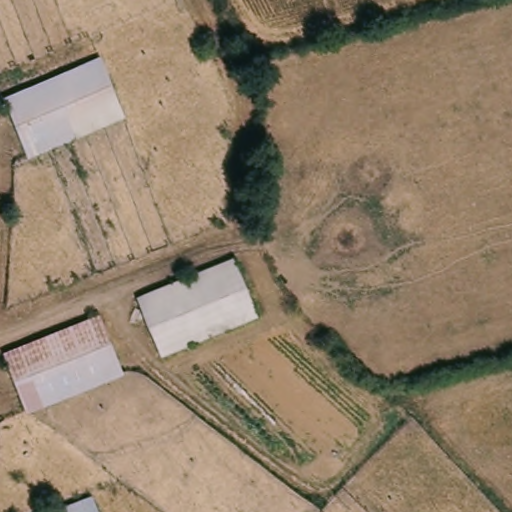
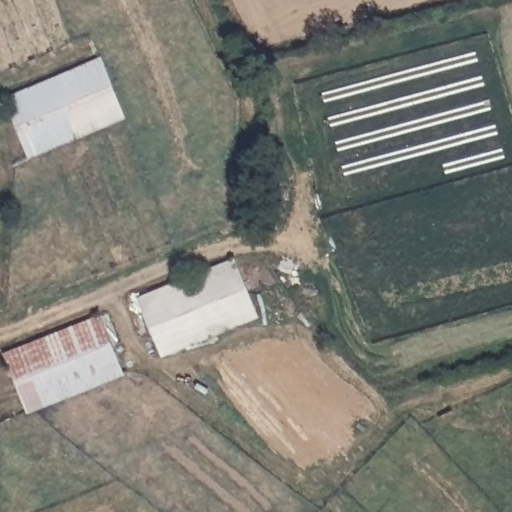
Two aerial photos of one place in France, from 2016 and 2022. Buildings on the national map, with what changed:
unchanged [(99,60),(122,116),(26,156),(3,100),(99,60)]
unchanged [(235,260),(257,314),(162,353),(140,299),(235,260)]
unchanged [(101,318),(124,374),(28,414),(5,358),(101,318)]

